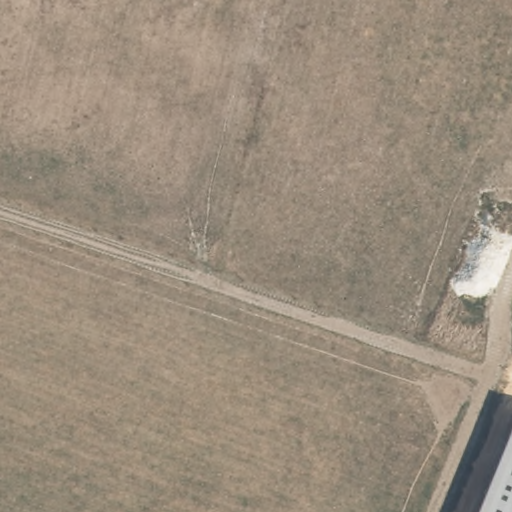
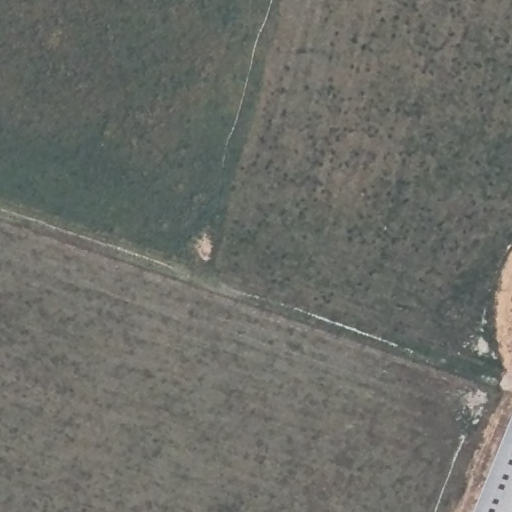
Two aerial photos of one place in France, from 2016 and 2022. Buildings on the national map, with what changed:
unchanged [(512,512),(478,512),(512,428),(512,512)]

